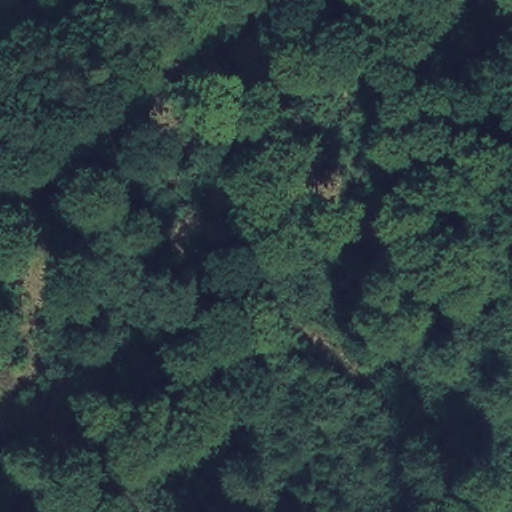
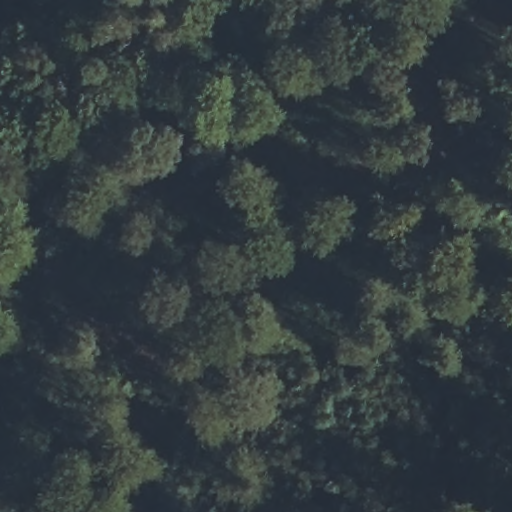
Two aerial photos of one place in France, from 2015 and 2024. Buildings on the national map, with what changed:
[]

